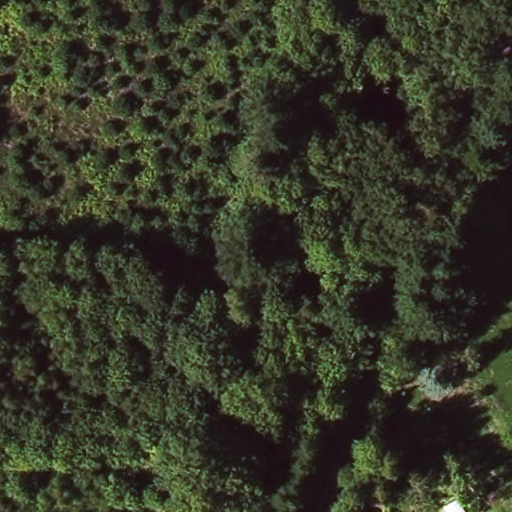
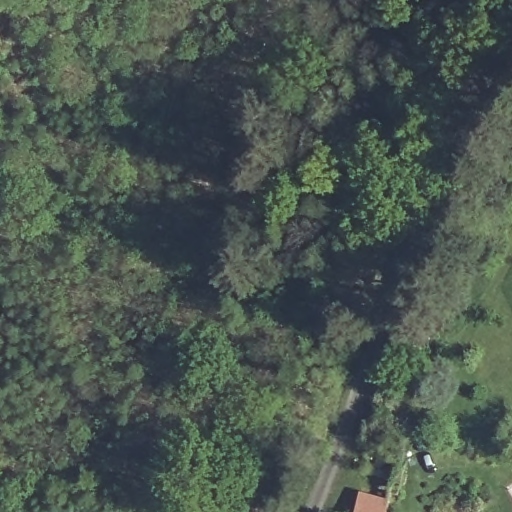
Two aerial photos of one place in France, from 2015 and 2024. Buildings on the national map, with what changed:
new [(386,512),(355,512),(359,490),(389,497),(386,512)]

